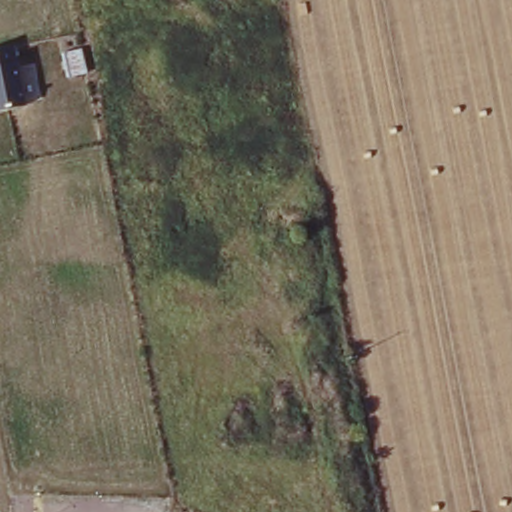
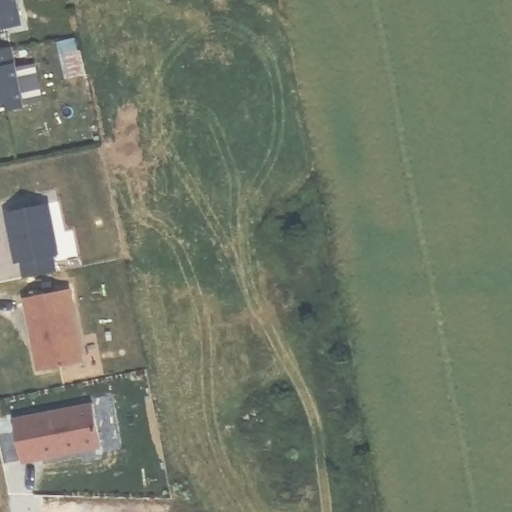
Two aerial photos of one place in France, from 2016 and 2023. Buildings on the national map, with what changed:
new [(21,30),(0,33),(0,0),(15,0),(21,30)]
unchanged [(13,46),(26,106),(0,111),(0,49),(13,46)]
new [(49,205),(60,261),(54,262),(58,283),(28,289),(23,267),(18,269),(8,215),(49,205)]
new [(68,293),(83,366),(39,375),(24,302),(68,293)]
new [(22,464),(13,423),(93,407),(102,451),(81,455),(73,456),(42,462),(22,466),(22,464)]

